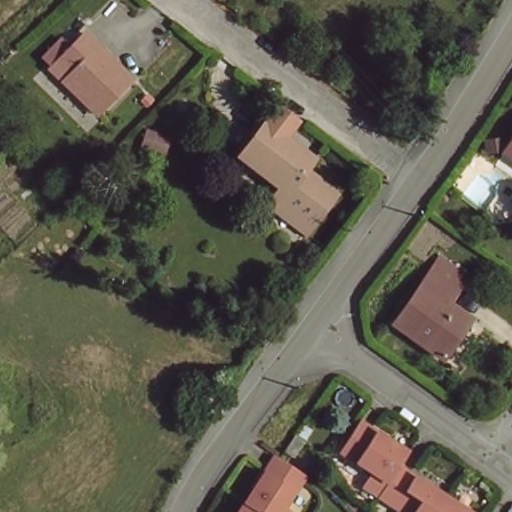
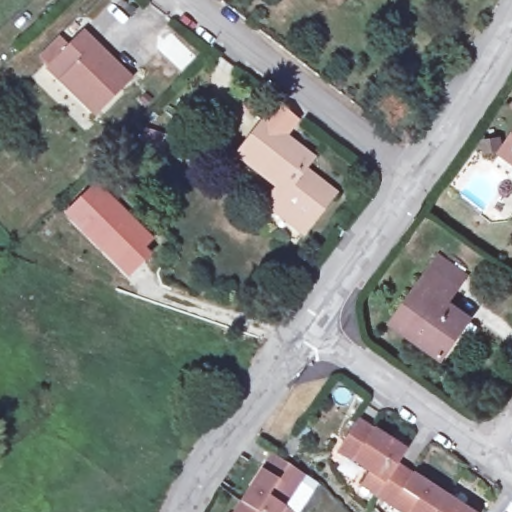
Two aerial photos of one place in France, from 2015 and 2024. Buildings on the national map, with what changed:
unchanged [(87,30),(133,79),(97,113),(74,90),(62,79),(72,69),(60,55),(87,30)]
unchanged [(296,121),(279,143),(305,161),(295,177),(325,199),(298,239),(264,213),(277,195),(232,163),(274,108),(296,121)]
unchanged [(512,137),(512,166),(498,156),(512,137)]
new [(97,180),(155,238),(146,248),(152,254),(127,279),(62,214),(97,180)]
unchanged [(440,362),(388,327),(434,257),(466,275),(451,306),(473,317),(440,362)]
unchanged [(358,491),(368,474),(350,462),(337,453),(361,422),(410,458),(400,474),(441,502),(457,512),(389,512),(358,491)]
unchanged [(304,440),(290,457),(280,450),(296,431),(304,440)]
unchanged [(238,508),(261,473),(275,455),(309,478),(295,499),(286,512),(236,512),(238,508)]

